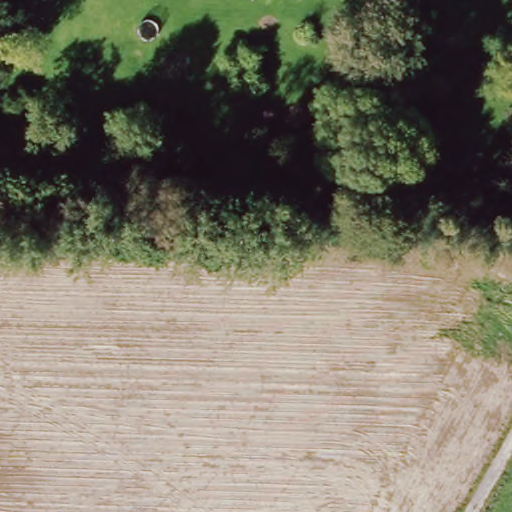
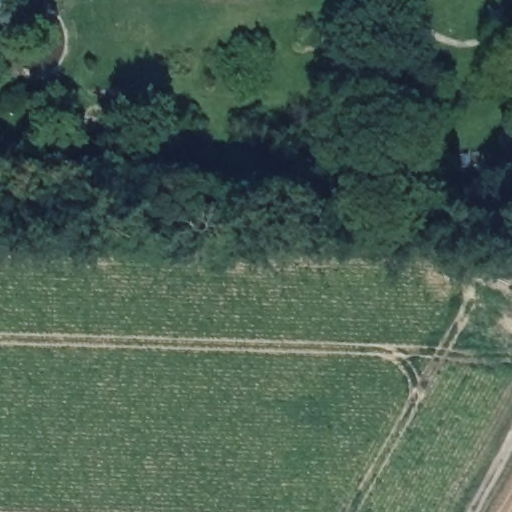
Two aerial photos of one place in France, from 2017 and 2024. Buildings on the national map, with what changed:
unchanged [(149,144),(149,128),(164,128),(164,144),(149,144)]

